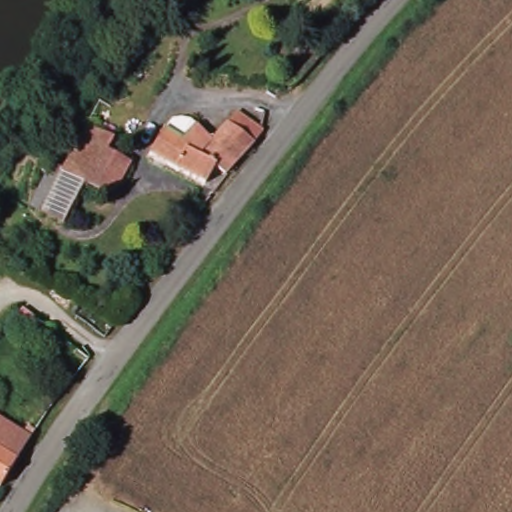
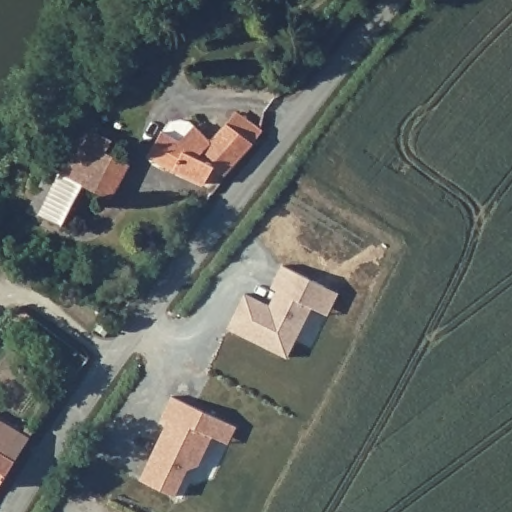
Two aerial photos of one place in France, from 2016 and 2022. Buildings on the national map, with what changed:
unchanged [(230,173),(223,167),(210,182),(190,174),(151,154),(165,128),(182,135),(196,122),(212,139),(230,121),(240,107),(270,130),(230,173)]
unchanged [(110,142),(104,153),(126,165),(111,197),(87,186),(61,172),(84,128),(110,142)]
unchanged [(87,186),(61,229),(37,219),(51,191),(40,185),(49,167),(61,172),(87,186)]
new [(330,315),(314,306),(290,356),(227,328),(245,291),(269,305),(276,291),(271,287),(282,264),(339,292),(330,315)]
new [(230,442),(212,435),(201,466),(189,467),(177,495),(139,480),(167,422),(162,418),(172,396),(237,426),(230,442)]
unchanged [(22,432),(26,426),(34,431),(0,488),(0,419),(22,432)]

